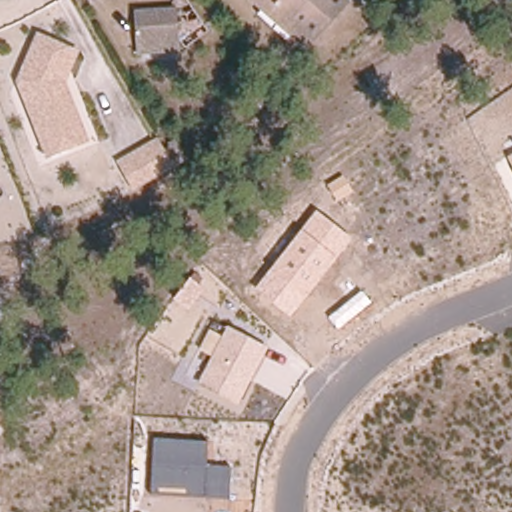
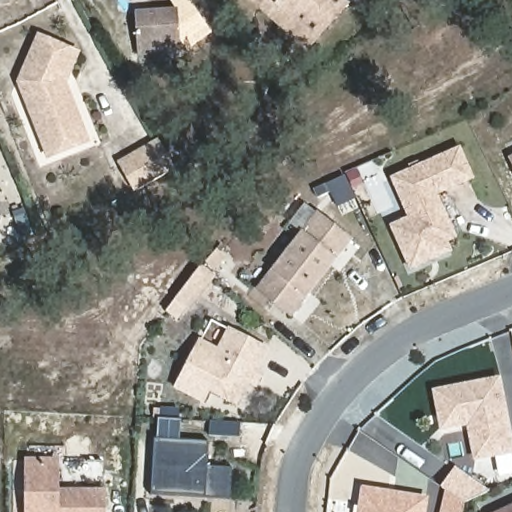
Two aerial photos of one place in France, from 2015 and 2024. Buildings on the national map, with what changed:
unchanged [(314,35),(275,0),(344,0),(314,35)]
unchanged [(175,21),(175,16),(173,12),(182,6),(198,30),(192,34),(178,35),(179,52),(136,54),(134,24),(175,21)]
unchanged [(75,53),(63,84),(78,121),(64,127),(72,147),(48,157),(19,82),(38,37),(75,53)]
unchanged [(141,187),(125,161),(165,137),(181,165),(141,187)]
new [(390,227),(408,220),(390,177),(460,147),(475,181),(439,196),(458,239),(450,243),(454,252),(411,272),(390,227)]
unchanged [(509,156),(512,154),(512,164),(509,156)]
unchanged [(291,316),(256,288),(316,212),(353,238),(291,316)]
unchanged [(238,404),(198,383),(211,356),(200,350),(211,328),(223,335),(228,326),(267,347),(238,404)]
new [(501,377),(512,433),(512,451),(478,456),(473,422),(446,426),(439,390),(501,377)]
unchanged [(207,462),(230,463),(228,498),(151,496),(156,436),(207,439),(207,462)]
new [(59,458),(60,488),(106,489),(106,512),(25,512),(25,460),(59,458)]
new [(459,467),(492,490),(467,502),(464,512),(445,512),(450,490),(445,486),(459,467)]
new [(430,497),(428,512),(363,512),(368,486),(430,497)]
new [(497,512),(512,506),(512,512),(497,512)]

